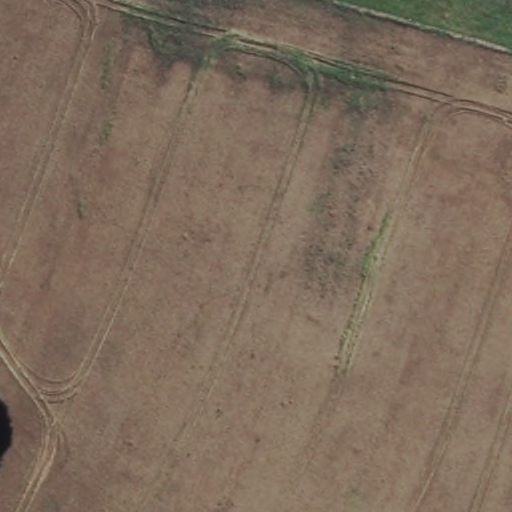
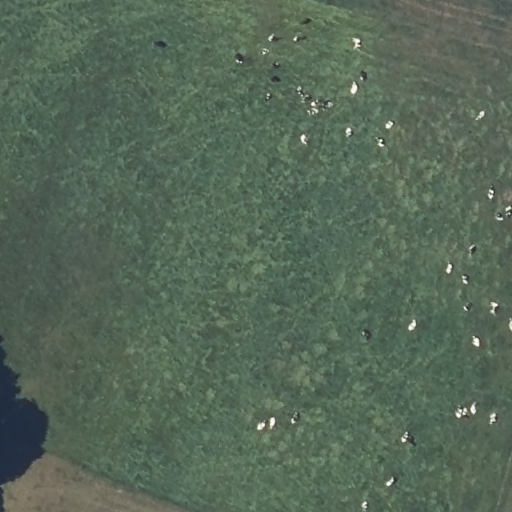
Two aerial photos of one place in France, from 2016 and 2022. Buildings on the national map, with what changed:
[]

